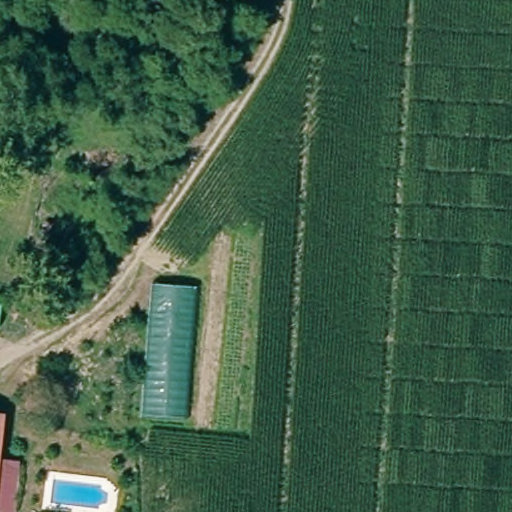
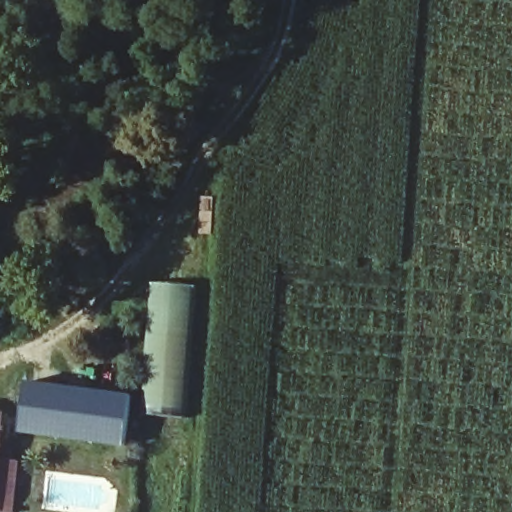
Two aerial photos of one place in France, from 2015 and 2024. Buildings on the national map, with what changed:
unchanged [(198,286),(185,416),(145,414),(155,284),(198,286)]
new [(132,396),(126,448),(20,433),(27,381),(132,396)]
unchanged [(0,488),(0,428),(7,429),(0,488)]
unchanged [(16,512),(0,512),(0,489),(3,460),(22,460),(16,512)]

